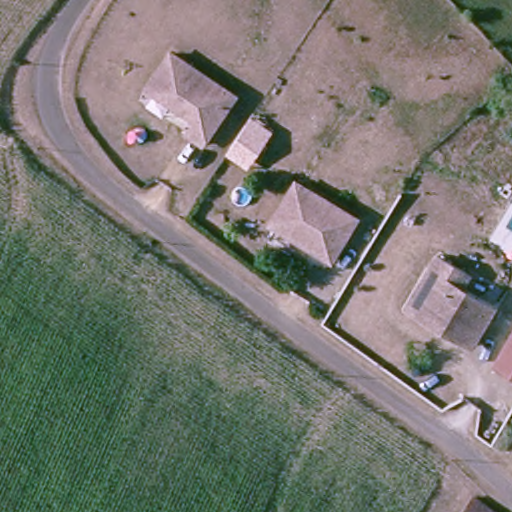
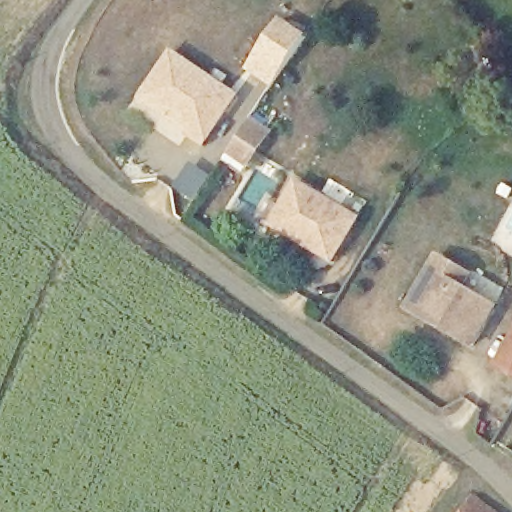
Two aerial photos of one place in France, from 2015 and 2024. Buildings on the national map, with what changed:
new [(245,70),(281,17),(307,35),(272,88),(245,70)]
unchanged [(191,136),(199,123),(146,92),(170,55),(230,90),(236,94),(228,109),(207,146),(191,136)]
unchanged [(257,128),(261,122),(282,135),(261,172),(239,159),(242,155),(257,128)]
unchanged [(302,187),(361,223),(337,266),(276,230),(302,187)]
unchanged [(471,279),(462,292),(495,311),(475,351),(441,332),(409,313),(431,274),(438,260),(471,279)]
unchanged [(502,360),(512,343),(512,365),(502,360)]
unchanged [(463,512),(474,495),(498,512),(463,512)]

